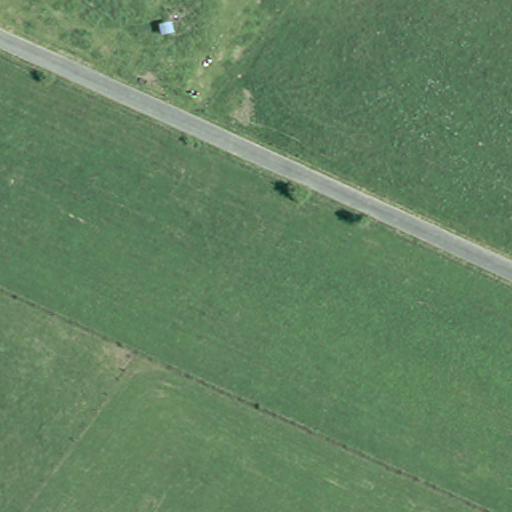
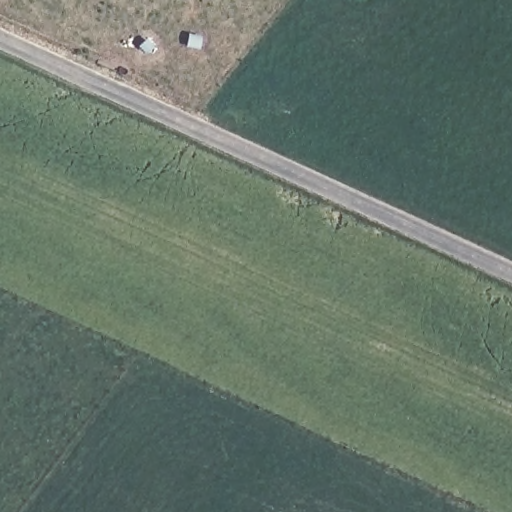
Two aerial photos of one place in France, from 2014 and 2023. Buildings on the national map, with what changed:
[]

